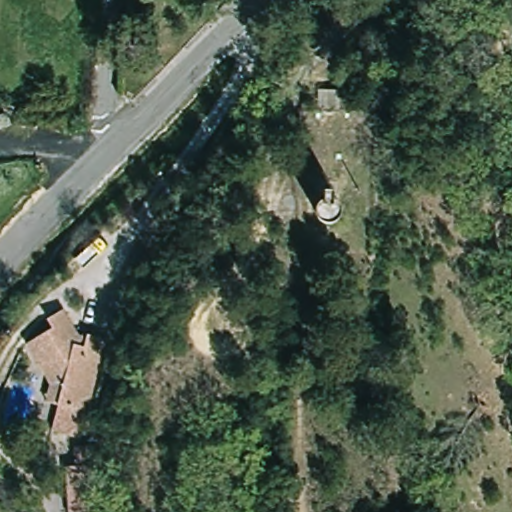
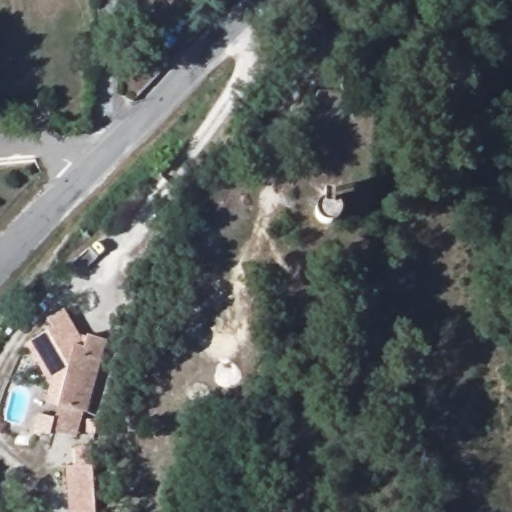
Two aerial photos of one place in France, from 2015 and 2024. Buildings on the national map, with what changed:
unchanged [(46,382),(36,363),(23,342),(50,326),(44,317),(59,307),(75,328),(86,329),(104,331),(95,405),(56,401),(44,400),(46,382)]
new [(75,449),(91,448),(96,512),(70,512),(67,467),(76,467),(75,449)]

